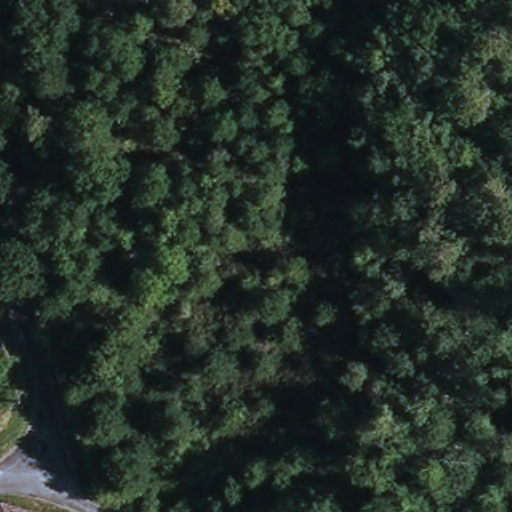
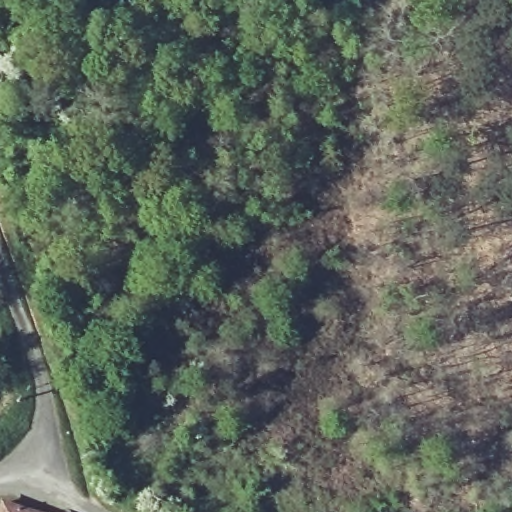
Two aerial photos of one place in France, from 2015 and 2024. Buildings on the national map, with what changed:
unchanged [(2,512),(0,512),(0,502),(5,503),(2,512)]
unchanged [(37,512),(2,512),(5,503),(37,512)]

